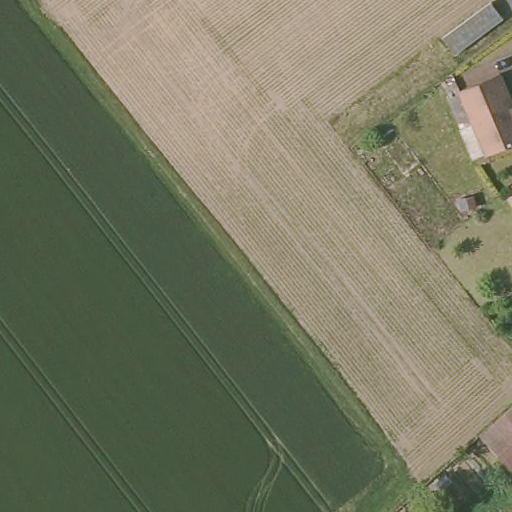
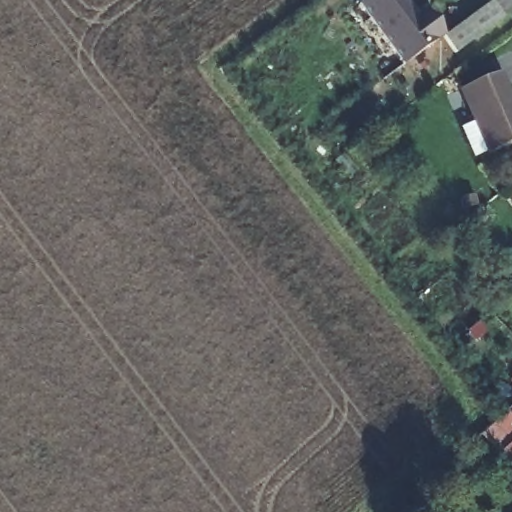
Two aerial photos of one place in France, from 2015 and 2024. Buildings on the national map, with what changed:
new [(412,0),(420,11),(424,8),(442,32),(404,60),(361,0),(412,0)]
unchanged [(500,0),(508,10),(459,46),(446,29),(485,0),(500,0)]
unchanged [(463,96),(501,76),(512,99),(512,149),(494,157),(463,96)]
unchanged [(512,407),(512,472),(507,476),(477,439),(512,407)]

